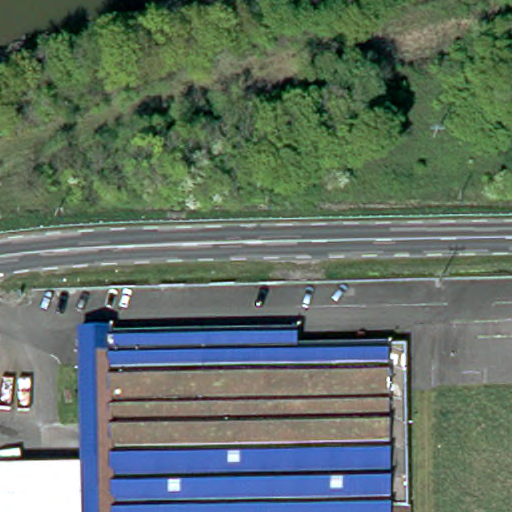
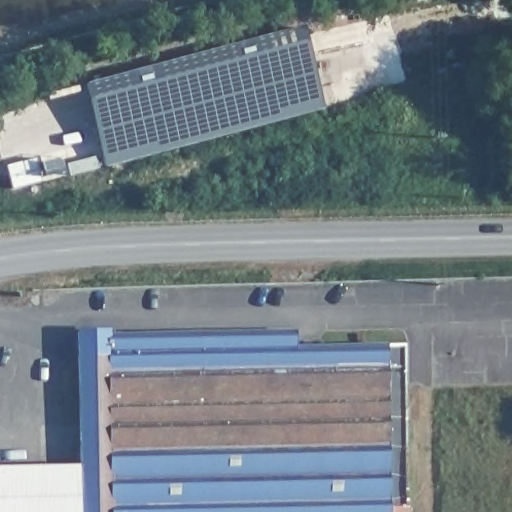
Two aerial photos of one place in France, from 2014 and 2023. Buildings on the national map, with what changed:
new [(327,109),(111,165),(95,84),(311,29),(327,109)]
unchanged [(77,336),(293,334),(294,351),(400,348),(404,512),(0,512),(0,467),(77,465),(77,336)]

